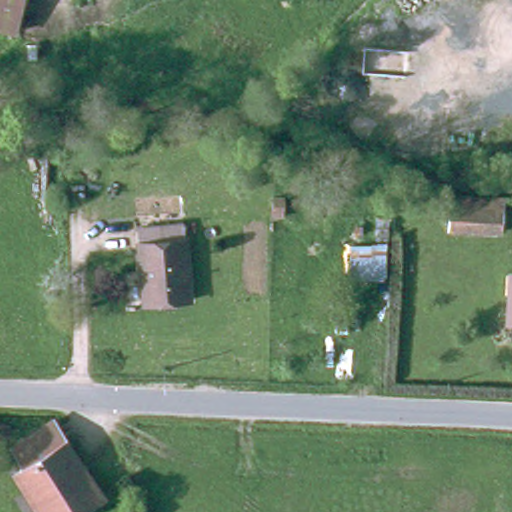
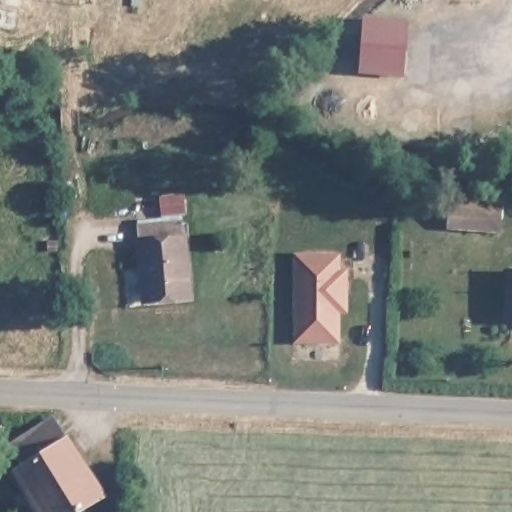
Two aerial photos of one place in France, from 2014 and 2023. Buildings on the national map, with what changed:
unchanged [(20,33),(0,30),(0,0),(25,0),(20,33)]
new [(363,22),(403,26),(400,72),(361,68),(363,22)]
unchanged [(496,206),(495,238),(447,234),(453,201),(496,206)]
unchanged [(141,275),(136,231),(182,225),(193,301),(152,307),(146,307),(141,275)]
new [(336,257),(336,272),(344,272),(344,306),(338,306),(338,345),(294,345),(293,258),(336,257)]
unchanged [(512,278),(512,324),(505,324),(507,278),(512,278)]
unchanged [(23,471),(10,450),(53,424),(103,498),(81,512),(36,512),(16,479),(14,476),(19,473),(23,471)]

